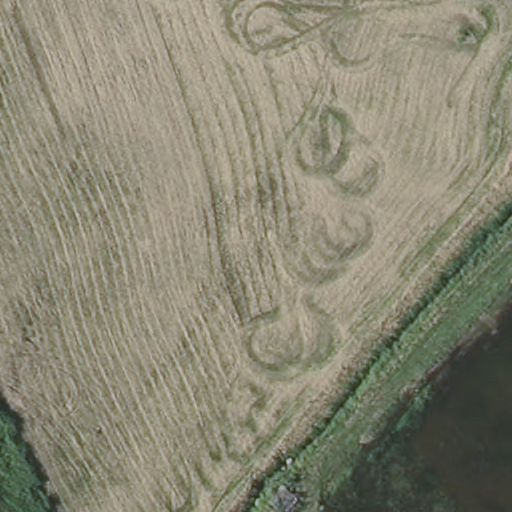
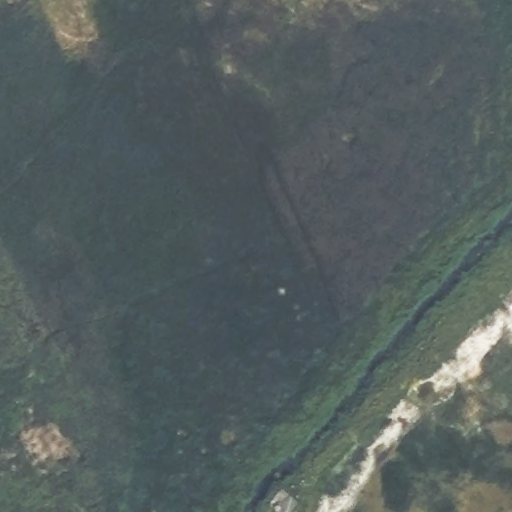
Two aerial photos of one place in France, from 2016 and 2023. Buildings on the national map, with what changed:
unchanged [(266,512),(262,507),(284,483),(300,497),(287,512),(266,512)]

